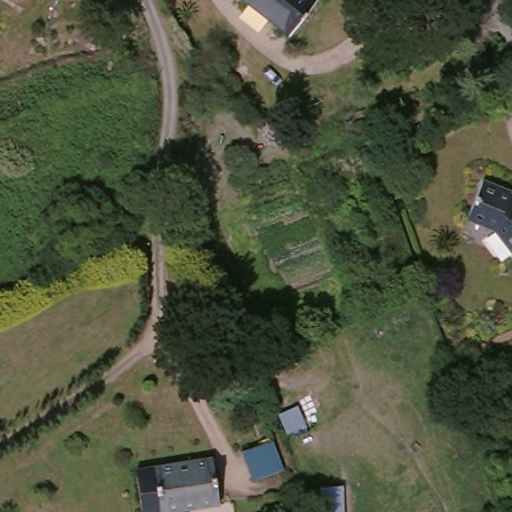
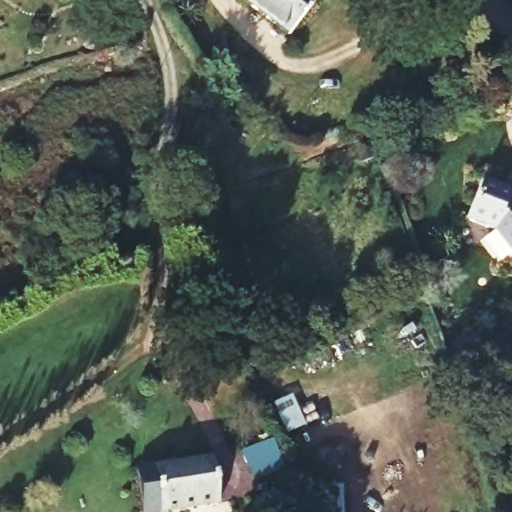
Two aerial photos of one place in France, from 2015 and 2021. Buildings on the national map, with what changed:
unchanged [(284,41),(229,0),(309,0),(313,2),(284,41)]
unchanged [(487,181),(512,194),(512,247),(502,235),(469,218),(487,181)]
unchanged [(231,456),(269,445),(281,479),(245,491),(231,456)]
unchanged [(183,512),(146,512),(139,474),(197,464),(204,508),(183,512)]

